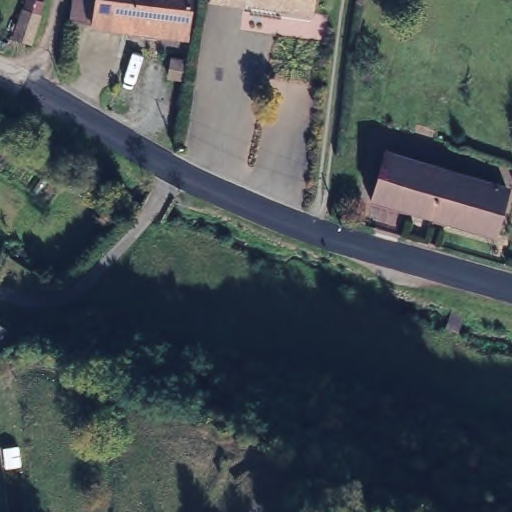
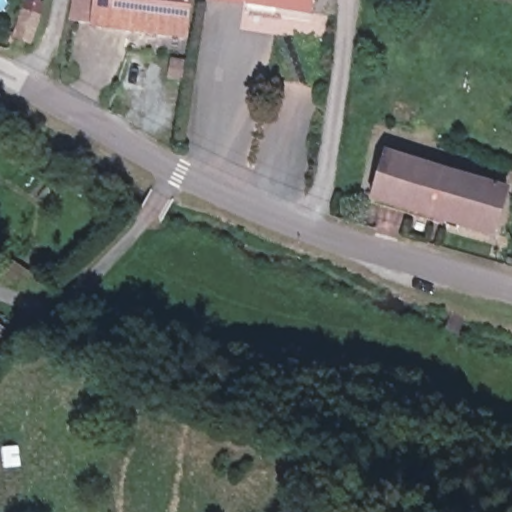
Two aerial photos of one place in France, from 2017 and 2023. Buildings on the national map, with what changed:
unchanged [(25,9),(28,0),(36,0),(46,2),(42,16),(33,40),(32,41),(17,36),(25,9)]
unchanged [(183,38),(66,22),(69,0),(188,0),(183,38)]
unchanged [(308,12),(227,0),(310,0),(308,12)]
unchanged [(502,184),(488,227),(431,209),(427,215),(368,197),(382,147),(502,184)]
unchanged [(12,326),(0,343),(0,317),(12,326)]

